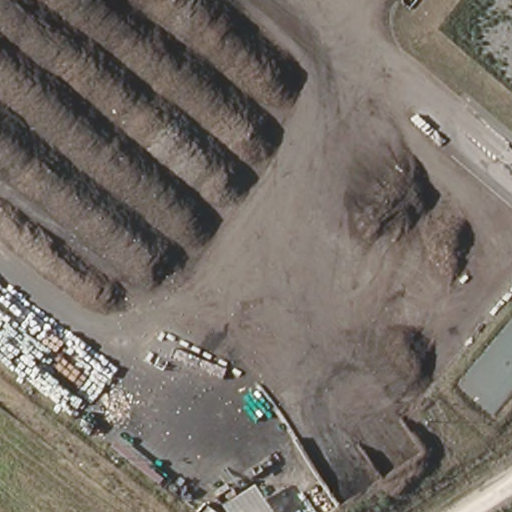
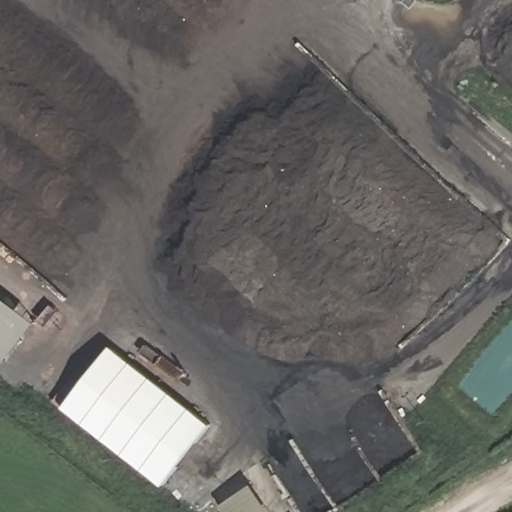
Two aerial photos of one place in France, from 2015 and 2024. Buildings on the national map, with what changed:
new [(0,358),(0,291),(39,321),(9,364),(0,358)]
new [(212,423),(165,485),(65,407),(113,345),(212,423)]
new [(255,484),(273,512),(228,512),(224,504),(255,484)]

